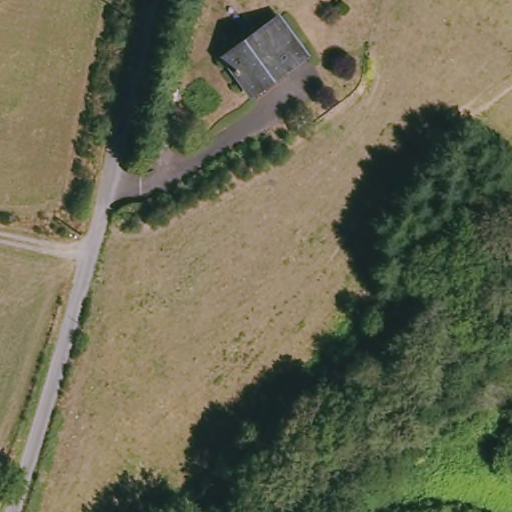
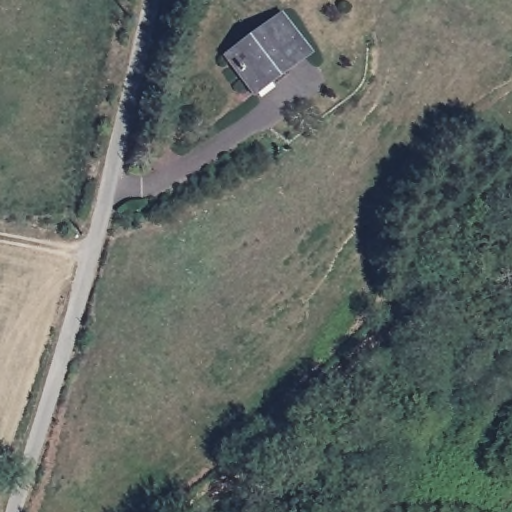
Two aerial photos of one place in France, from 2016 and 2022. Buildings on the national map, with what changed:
unchanged [(311,56),(279,82),(272,81),(258,93),(234,60),(284,21),(311,56)]

